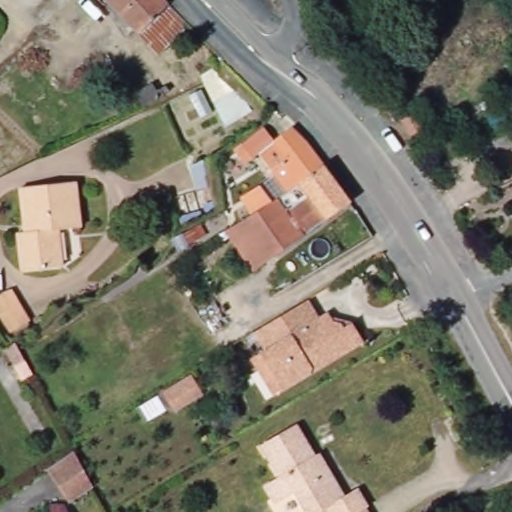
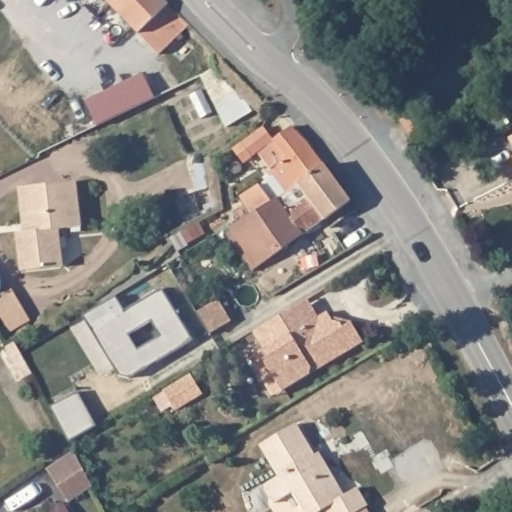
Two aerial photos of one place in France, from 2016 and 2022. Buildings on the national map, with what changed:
unchanged [(190,24),(159,54),(105,0),(165,0),(190,24)]
unchanged [(203,72),(210,70),(256,109),(222,129),(202,92),(203,72)]
new [(155,96),(97,124),(85,100),(144,72),(155,96)]
demolished [(164,93),(165,94),(145,107),(136,93),(152,83),(156,90),(166,85),(169,90),(164,93)]
unchanged [(420,118),(428,134),(413,143),(403,127),(420,118)]
unchanged [(325,165),(300,183),(301,184),(273,200),(261,185),(273,175),(260,155),(275,142),(274,140),(291,126),(307,142),(325,165)]
unchanged [(254,270),(225,230),(237,223),(273,200),(301,184),(300,183),(325,165),(350,201),(254,270)]
unchanged [(62,266),(22,270),(18,232),(25,231),(20,187),(75,181),(80,227),(58,229),(62,266)]
unchanged [(9,331),(0,316),(0,297),(11,290),(29,321),(9,331)]
new [(124,313),(162,290),(192,341),(129,378),(117,373),(85,317),(116,298),(124,313)]
unchanged [(257,365),(250,354),(265,345),(254,327),(286,308),(307,295),(318,313),(328,307),(331,313),(352,318),(363,337),(347,347),(310,369),(282,386),(273,391),(257,365)]
unchanged [(190,400),(176,408),(166,391),(192,375),(197,384),(202,392),(190,400)]
new [(52,407),(78,393),(94,424),(70,438),(52,407)]
unchanged [(320,512),(311,512),(303,510),(293,492),(275,503),(264,485),(278,477),(260,445),(296,424),(315,455),(320,452),(345,495),(357,488),(368,505),(365,507),(368,512),(328,512),(325,508),(320,512)]
unchanged [(47,463),(74,445),(89,471),(93,480),(70,496),(64,488),(47,463)]

